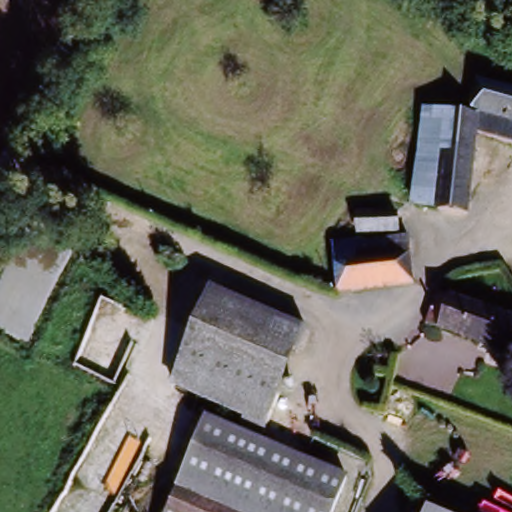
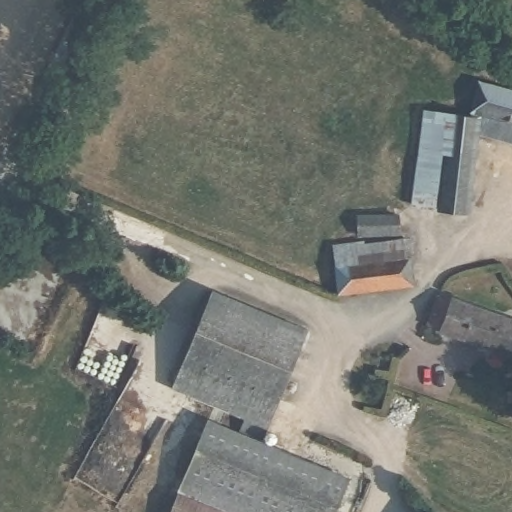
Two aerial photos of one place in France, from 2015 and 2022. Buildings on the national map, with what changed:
unchanged [(479,145),(469,220),(410,215),(419,116),(464,118),(474,85),(512,94),(512,151),(479,145)]
unchanged [(362,222),(399,221),(401,240),(363,242),(362,222)]
unchanged [(364,250),(411,248),(416,295),(338,301),(336,276),(335,272),(360,270),(359,250),(364,250)]
unchanged [(267,426),(245,418),(174,389),(209,301),(302,340),(267,426)]
unchanged [(429,332),(440,301),(512,328),(512,363),(429,332)]
unchanged [(344,482),(331,512),(243,512),(181,487),(205,425),(237,439),(245,418),(267,426),(258,448),(344,482)]
unchanged [(243,512),(170,512),(181,487),(243,512)]

